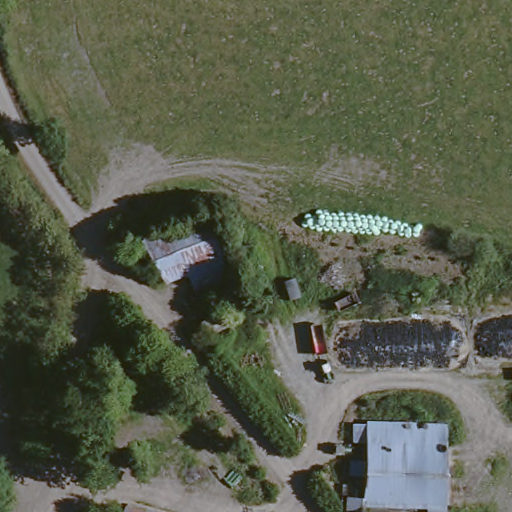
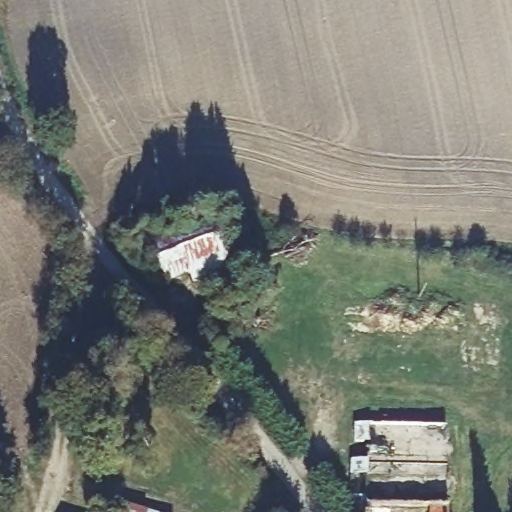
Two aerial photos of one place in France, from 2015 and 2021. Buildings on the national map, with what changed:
unchanged [(212,213),(235,284),(194,298),(186,274),(162,283),(143,235),(212,213)]
new [(363,507),(363,512),(347,512),(347,497),(364,497),(367,475),(350,475),(350,460),(368,459),(368,441),(353,442),(353,423),(446,426),(447,510),(447,512),(428,512),(428,508),(363,507)]
demolished [(365,497),(445,495),(446,512),(349,512),(350,491),(365,492),(365,497)]
new [(145,512),(123,512),(125,505),(145,512)]

